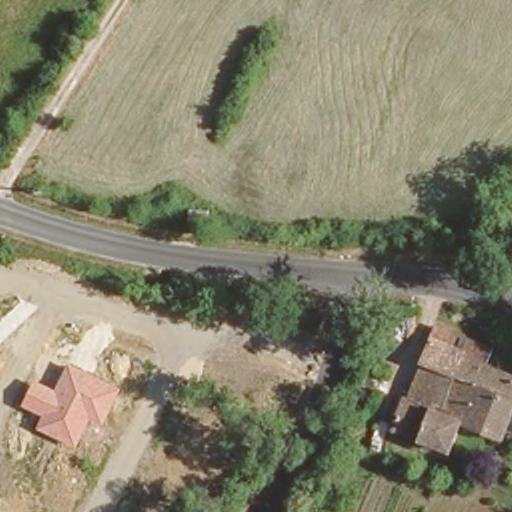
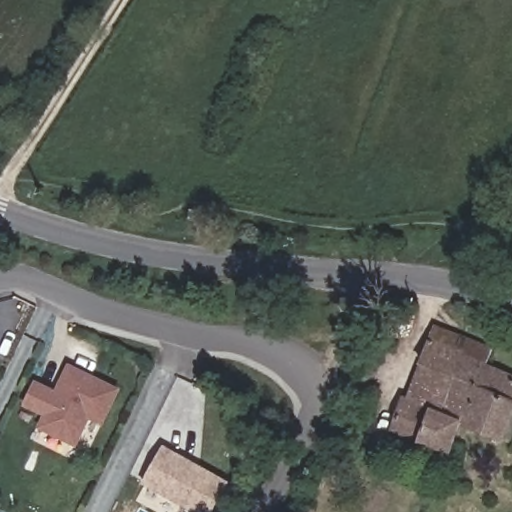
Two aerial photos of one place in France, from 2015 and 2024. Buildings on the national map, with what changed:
unchanged [(434,320),(488,341),(481,360),(427,340),(434,320)]
unchanged [(481,360),(512,372),(512,395),(498,432),(459,417),(449,442),(389,420),(401,388),(407,391),(427,340),(481,360)]
unchanged [(106,424),(90,416),(76,447),(39,430),(45,415),(24,406),(36,382),(56,391),(68,363),(123,388),(106,424)]
unchanged [(366,413),(351,407),(358,390),(372,396),(366,413)]
new [(163,445),(228,480),(211,512),(195,512),(142,484),(163,445)]

